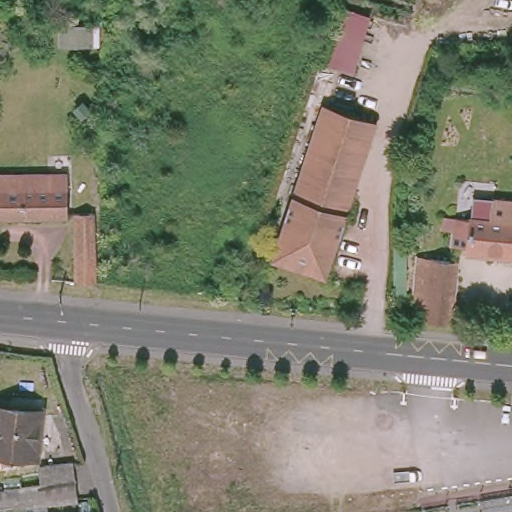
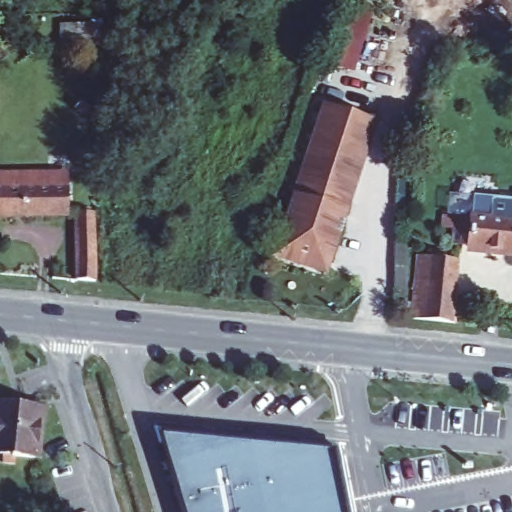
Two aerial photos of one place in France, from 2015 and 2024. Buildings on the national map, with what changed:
unchanged [(353,72),(320,62),(337,5),(371,16),(353,72)]
unchanged [(272,255),(278,239),(323,98),(378,115),(333,257),(328,273),(272,255)]
unchanged [(92,172),(94,276),(75,277),(74,212),(0,211),(0,171),(92,172)]
unchanged [(463,242),(448,241),(451,211),(485,215),(488,192),(512,194),(512,248),(464,243),(463,242)]
unchanged [(418,253),(455,256),(449,318),(413,315),(418,253)]
unchanged [(42,407),(37,456),(33,456),(0,453),(0,402),(42,407)]
new [(338,447),(350,512),(183,512),(159,430),(338,447)]
demolished [(33,463),(73,457),(79,497),(0,508),(0,469),(33,463)]

